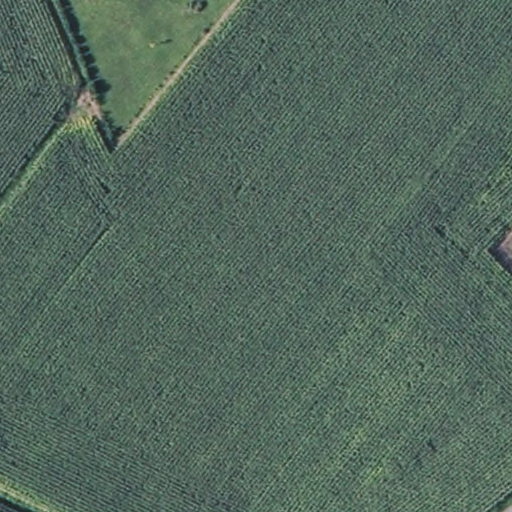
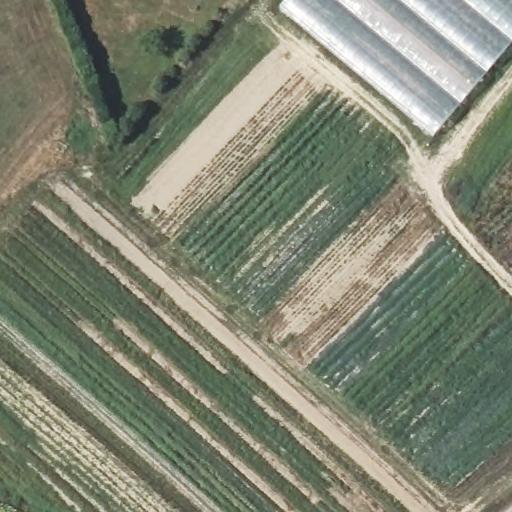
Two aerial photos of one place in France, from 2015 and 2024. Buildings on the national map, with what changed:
new [(288,0),(512,0),(512,45),(433,140),(280,10),(288,0)]

